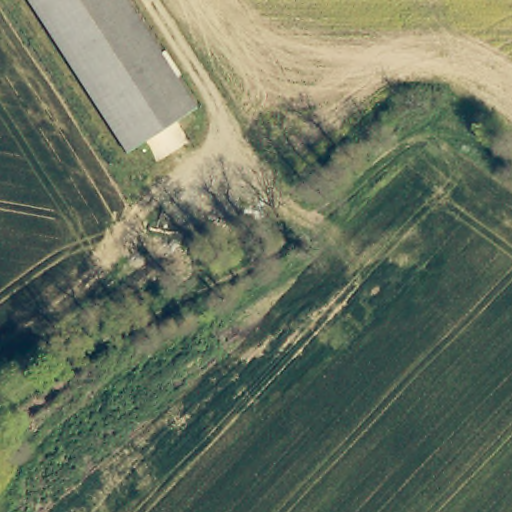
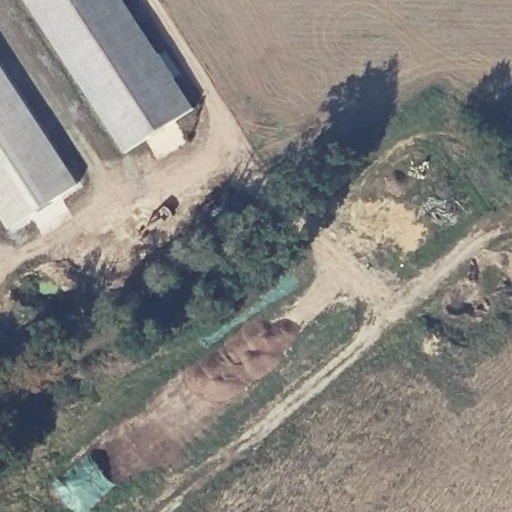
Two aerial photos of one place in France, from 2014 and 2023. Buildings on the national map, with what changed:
unchanged [(130,150),(35,0),(125,0),(194,108),(130,150)]
new [(8,228),(0,216),(0,64),(79,183),(8,228)]

